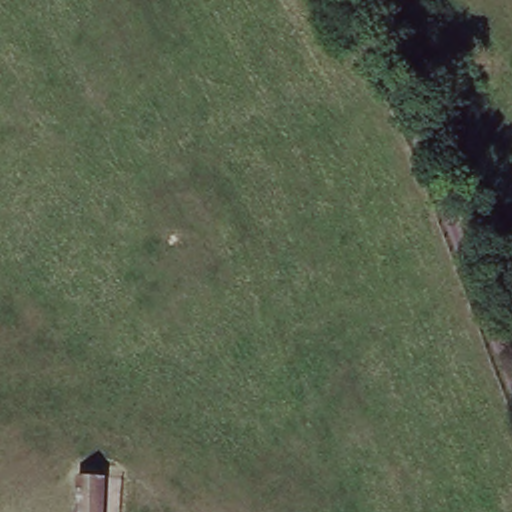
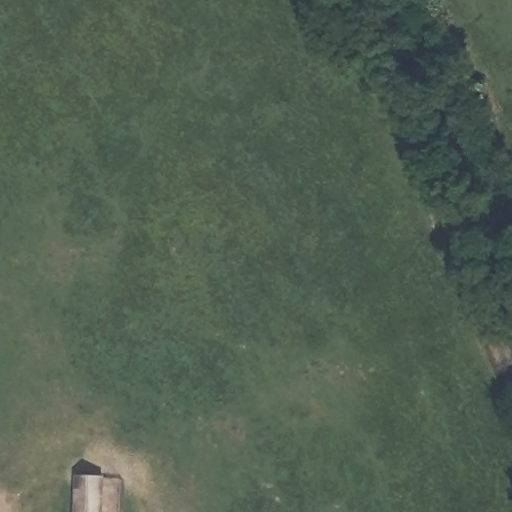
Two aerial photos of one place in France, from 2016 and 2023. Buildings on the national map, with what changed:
unchanged [(103,512),(83,512),(85,472),(105,473),(103,512)]

